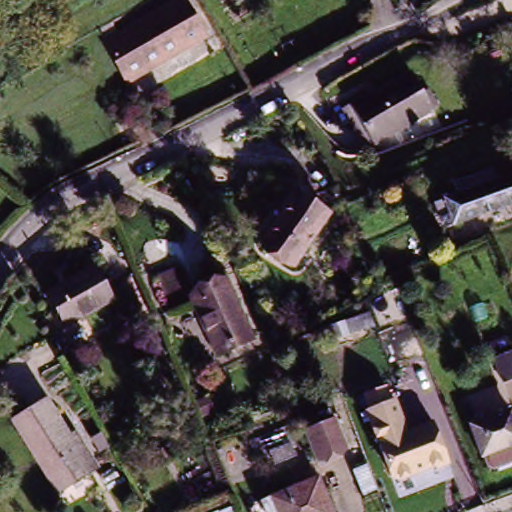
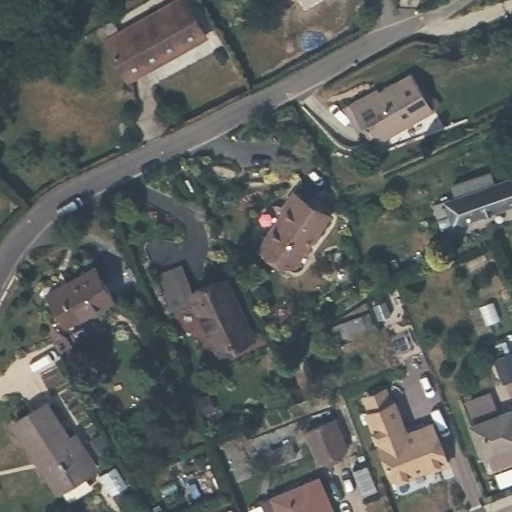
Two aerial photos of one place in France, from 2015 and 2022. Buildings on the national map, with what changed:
unchanged [(131,82),(109,42),(184,0),(187,0),(198,19),(144,49),(156,68),(131,82)]
unchanged [(209,39),(156,68),(144,49),(198,19),(209,39)]
unchanged [(371,94),(373,98),(415,75),(435,111),(376,145),(353,104),(371,94)]
unchanged [(459,225),(454,214),(443,217),(438,203),(512,176),(512,206),(459,225)]
unchanged [(296,269),(264,248),(301,196),(332,218),(296,269)]
unchanged [(47,294),(93,266),(113,299),(69,328),(47,294)]
unchanged [(226,281),(253,340),(218,355),(193,296),(226,281)]
unchanged [(360,314),(364,329),(331,339),(326,325),(360,314)]
unchanged [(15,430),(50,408),(93,475),(58,497),(15,430)]
unchanged [(393,484),(369,418),(397,408),(408,439),(428,432),(429,436),(432,435),(443,467),(393,484)]
unchanged [(510,411),(512,416),(512,449),(481,460),(469,427),(510,411)]
unchanged [(333,434),(341,463),(316,469),(309,441),(333,434)]
unchanged [(334,512),(274,512),(269,498),(324,479),(334,512)]

